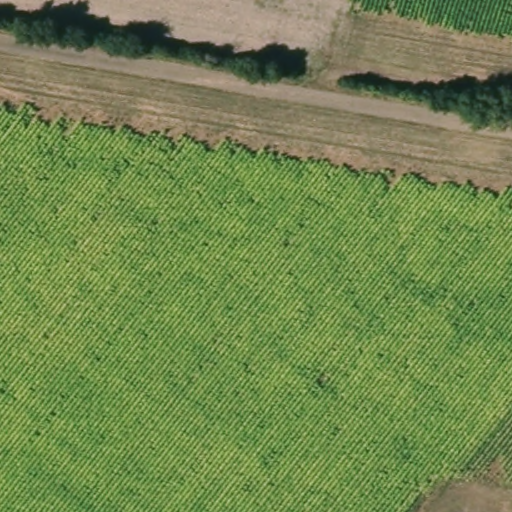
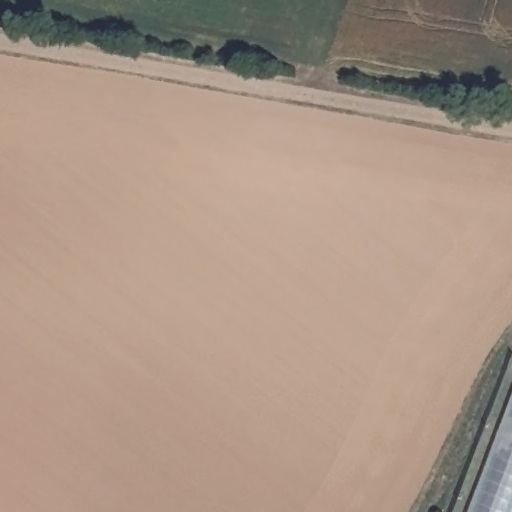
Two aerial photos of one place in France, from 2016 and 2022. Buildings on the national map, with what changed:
new [(512,395),(512,512),(469,512),(512,395)]

